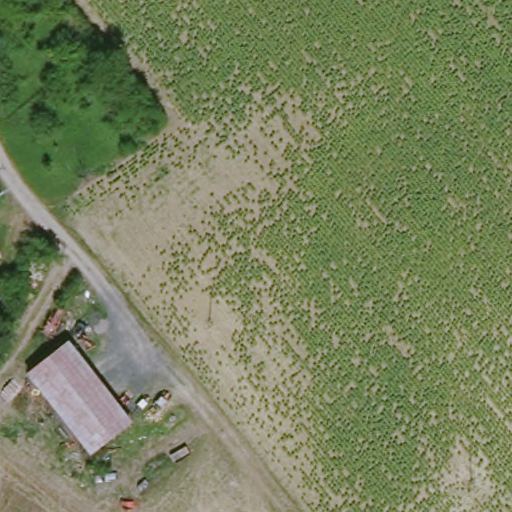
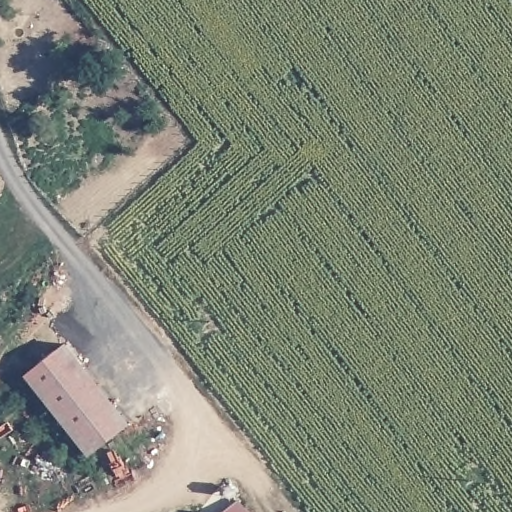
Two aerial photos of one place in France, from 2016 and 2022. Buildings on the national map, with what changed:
unchanged [(70,346),(130,429),(90,459),(29,376),(70,346)]
new [(249,512),(224,512),(239,500),(249,512)]

